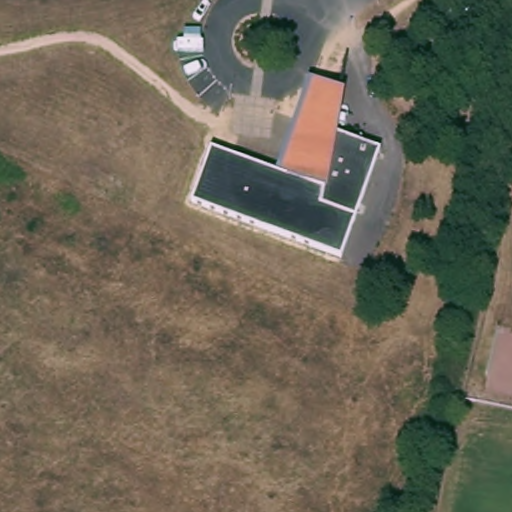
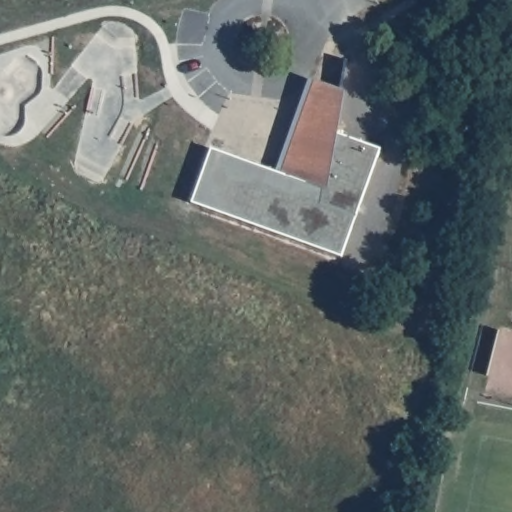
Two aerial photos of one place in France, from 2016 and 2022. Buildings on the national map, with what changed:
unchanged [(280,172),(281,170),(290,174),(294,164),(285,160),(290,145),(299,149),(321,88),(338,94),(334,130),(381,148),(341,255),(191,202),(211,147),(240,158),(241,156),(262,164),(262,165),(269,168),(280,172)]

